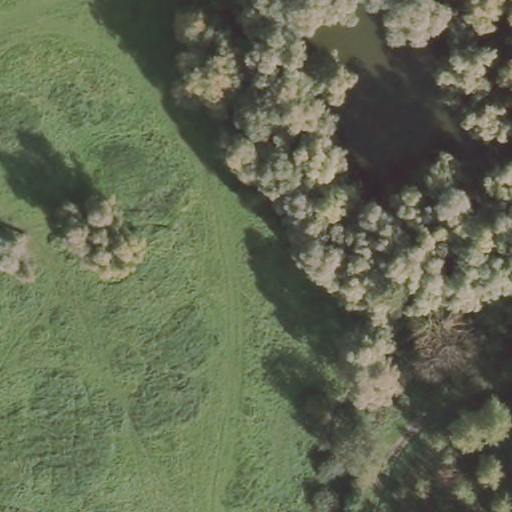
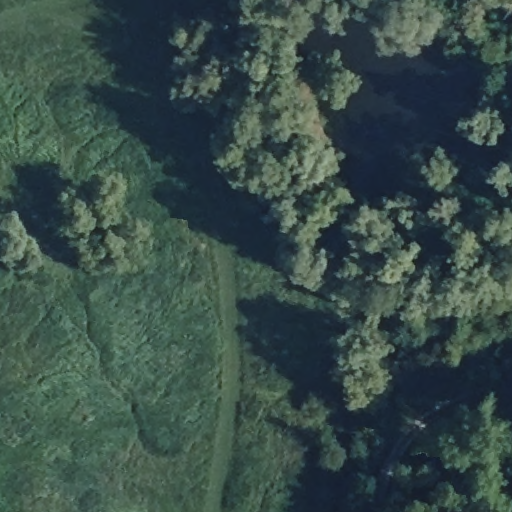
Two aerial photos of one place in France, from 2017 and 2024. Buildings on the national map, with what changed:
[]

